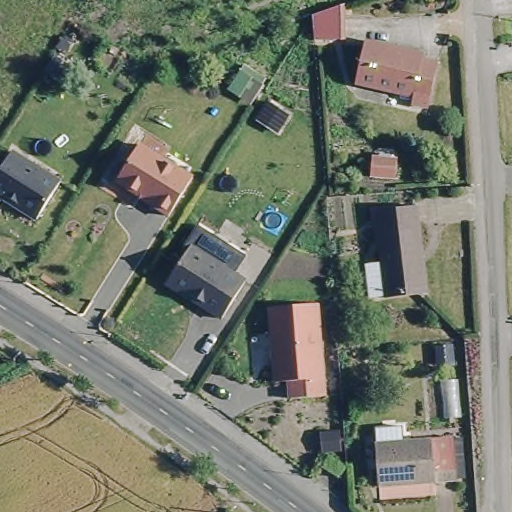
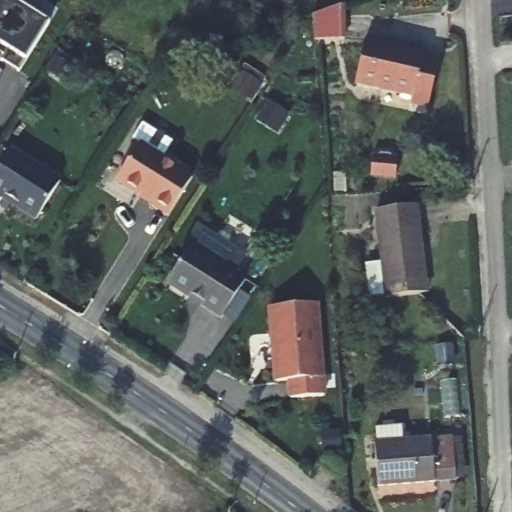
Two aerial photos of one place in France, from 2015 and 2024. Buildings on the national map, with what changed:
new [(2,57),(0,56),(0,0),(21,0),(19,3),(50,23),(26,61),(20,73),(0,61),(2,57)]
unchanged [(347,0),(347,35),(317,36),(315,9),(343,0),(347,0)]
unchanged [(425,107),(407,103),(409,95),(353,81),(362,39),(378,42),(378,45),(392,49),(393,46),(420,52),(420,58),(435,62),(425,107)]
unchanged [(153,206),(120,185),(118,180),(140,147),(193,180),(168,219),(152,207),(153,206)]
unchanged [(60,184),(37,221),(2,199),(0,203),(0,172),(12,152),(60,184)]
unchanged [(366,264),(383,262),(378,211),(417,207),(421,254),(425,295),(421,295),(386,298),(386,297),(369,298),(366,264)]
unchanged [(192,244),(247,277),(222,320),(167,285),(192,244)]
unchanged [(322,399),(290,402),(288,384),(275,385),(270,311),(316,307),(322,399)]
unchanged [(455,483),(377,486),(375,444),(377,444),(377,429),(403,428),(403,443),(453,443),(455,483)]
unchanged [(339,467),(335,473),(322,466),(326,459),(339,467)]

